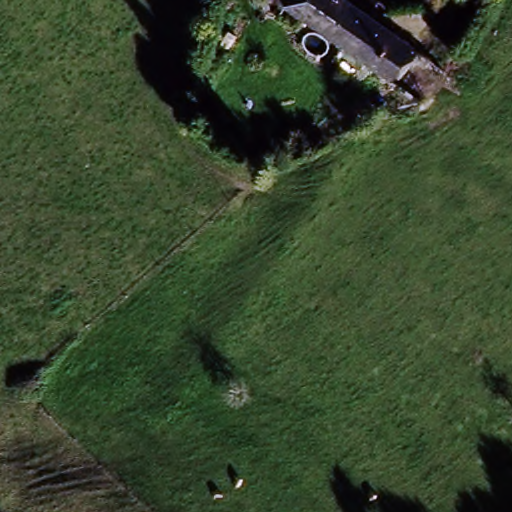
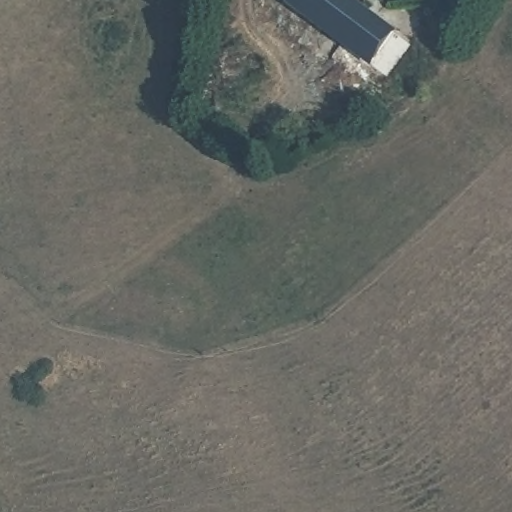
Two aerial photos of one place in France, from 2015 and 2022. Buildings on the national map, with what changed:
unchanged [(288,0),(277,14),(259,0),(288,0)]
unchanged [(288,0),(325,0),(311,20),(302,32),(277,14),(288,0)]
unchanged [(349,0),(417,50),(394,81),(311,20),(325,0),(349,0)]

